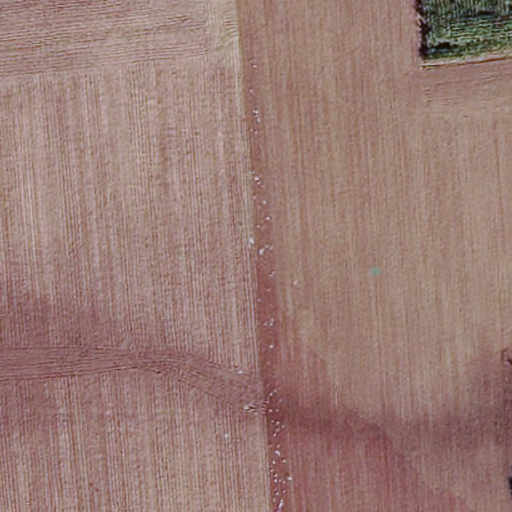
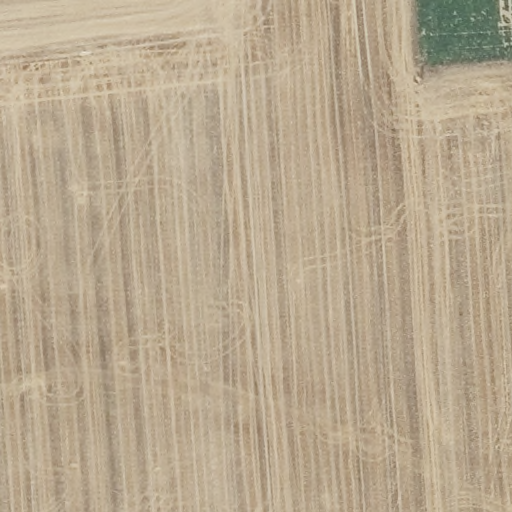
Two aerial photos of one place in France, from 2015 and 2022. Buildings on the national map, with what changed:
[]

